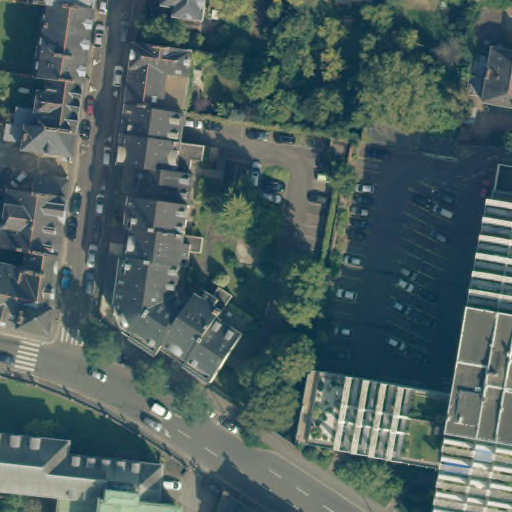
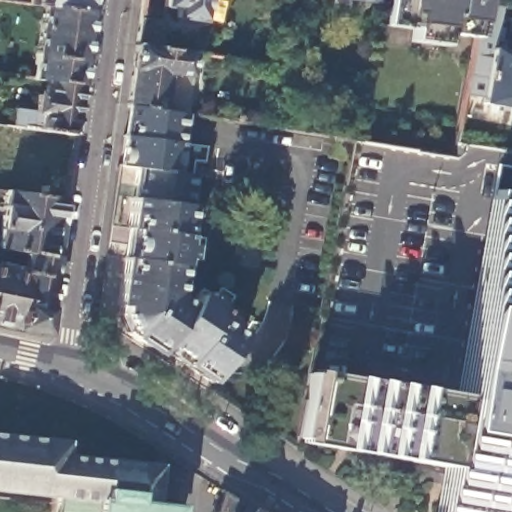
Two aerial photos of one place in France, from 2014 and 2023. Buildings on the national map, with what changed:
unchanged [(49,76),(42,76),(29,74),(39,2),(24,0),(87,0),(86,8),(76,80),(49,76)]
unchanged [(177,15),(179,5),(166,2),(166,0),(206,0),(204,18),(177,15)]
new [(447,31),(445,45),(412,40),(414,28),(382,25),(386,0),(483,0),(477,36),(447,31)]
unchanged [(501,24),(505,25),(502,39),(498,38),(496,46),(512,49),(512,103),(483,99),(485,92),(467,89),(483,0),(490,0),(504,2),(501,24)]
unchanged [(129,105),(137,45),(141,20),(165,24),(161,49),(193,54),(182,114),(131,106),(129,105)]
unchanged [(282,88),(266,85),(269,65),(284,67),(282,88)]
unchanged [(69,130),(8,122),(11,105),(30,108),(33,91),(40,92),(42,76),(49,76),(76,80),(69,130)]
unchanged [(181,143),(205,146),(202,162),(192,160),(190,175),(194,175),(186,236),(203,239),(201,254),(190,252),(188,267),(181,266),(177,296),(190,305),(201,288),(214,296),(219,288),(232,296),(218,319),(242,335),(212,382),(148,341),(145,346),(132,337),(135,333),(128,328),(123,315),(124,307),(117,305),(136,167),(121,165),(121,155),(129,105),(131,106),(182,114),(185,115),(181,143)]
unchanged [(15,147),(16,137),(0,136),(0,124),(1,121),(8,122),(69,130),(65,154),(15,147)]
unchanged [(0,244),(0,219),(6,186),(30,190),(33,174),(66,178),(65,195),(56,254),(54,272),(46,330),(43,330),(0,321),(0,262),(26,267),(28,249),(0,244)]
unchanged [(453,390),(468,304),(489,191),(512,196),(512,512),(434,512),(441,460),(304,441),(314,369),(453,390)]
unchanged [(65,456),(158,466),(155,505),(177,507),(176,512),(56,512),(58,495),(0,489),(0,436),(66,443),(65,456)]
unchanged [(263,512),(217,512),(226,487),(263,512)]

